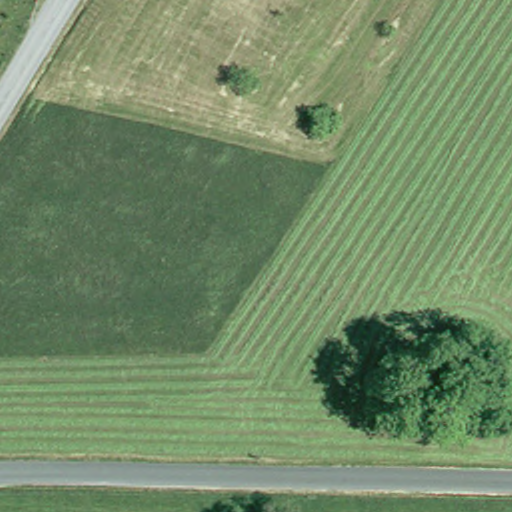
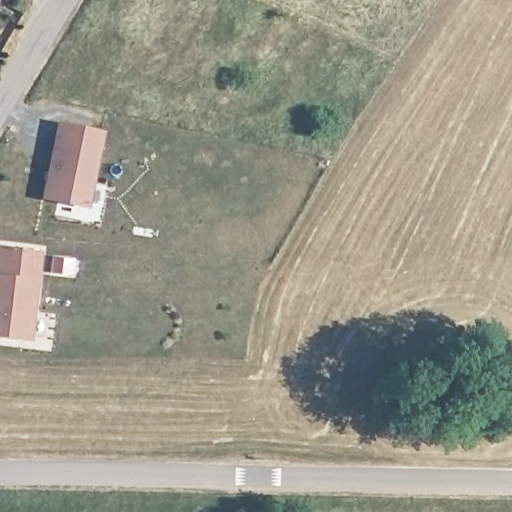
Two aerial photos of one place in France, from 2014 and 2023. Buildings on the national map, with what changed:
new [(105,131),(90,209),(42,199),(57,121),(105,131)]
new [(42,250),(32,341),(0,337),(0,246),(42,250)]

